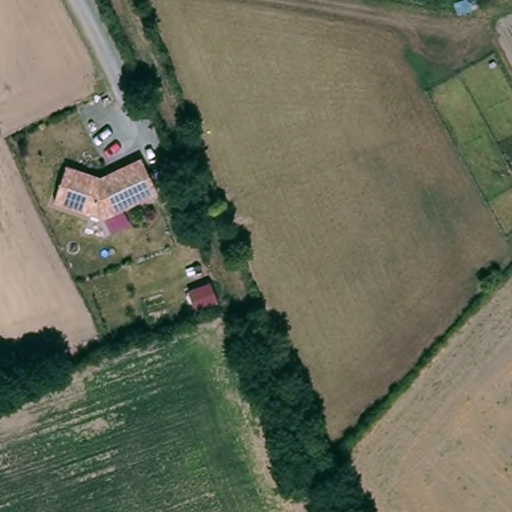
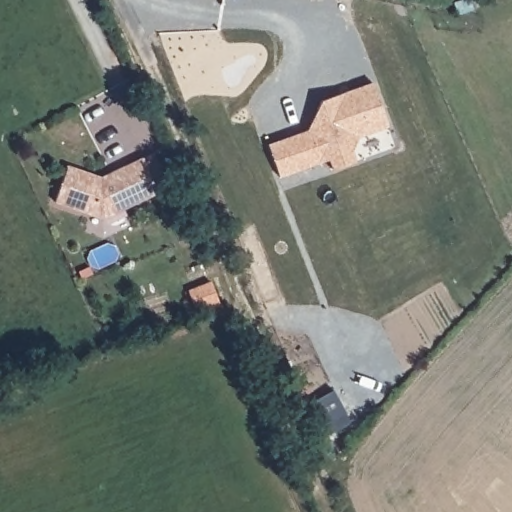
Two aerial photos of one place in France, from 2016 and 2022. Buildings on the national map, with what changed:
new [(267,146),(306,131),(320,101),(372,83),(387,126),(358,136),(349,150),(354,162),(331,169),(328,160),(279,177),(267,146)]
unchanged [(100,177),(141,156),(158,193),(101,219),(54,202),(66,165),(100,177)]

